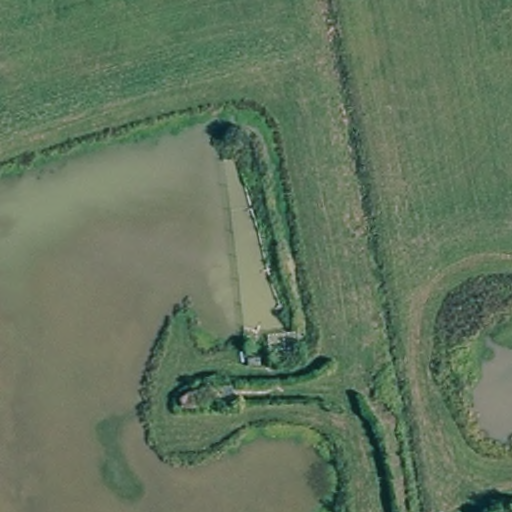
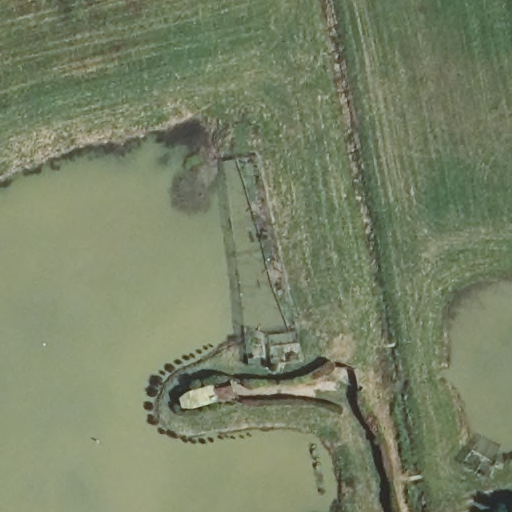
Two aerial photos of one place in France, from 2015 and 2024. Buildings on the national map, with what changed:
unchanged [(214,382),(221,404),(187,421),(177,399),(214,382)]

